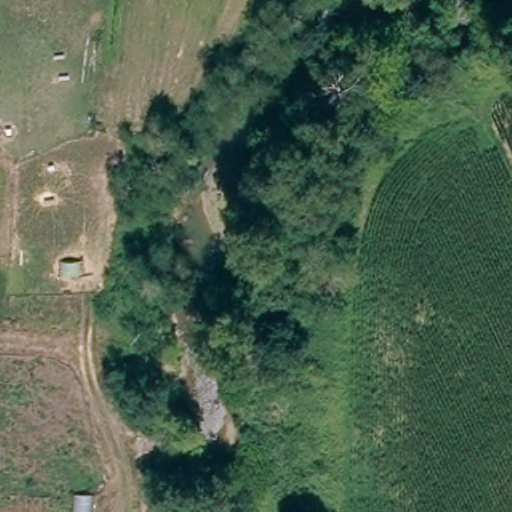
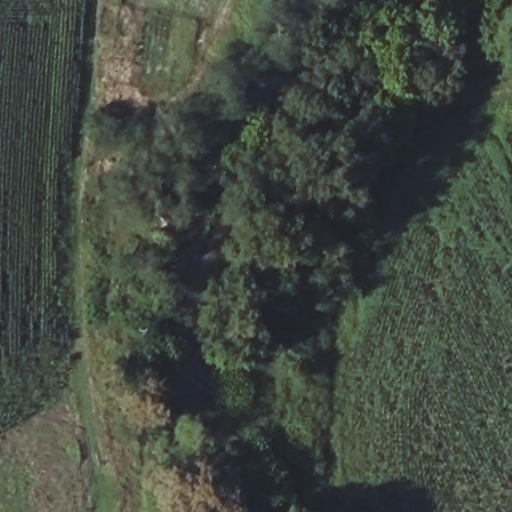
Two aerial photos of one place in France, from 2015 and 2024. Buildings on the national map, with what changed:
[]

